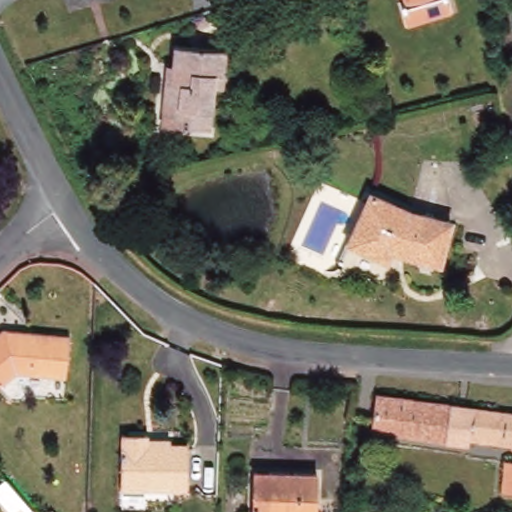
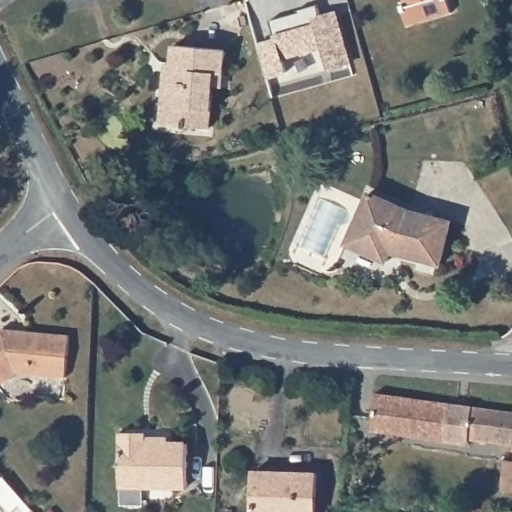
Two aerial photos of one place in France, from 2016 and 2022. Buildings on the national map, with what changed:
unchanged [(407,25),(402,9),(405,8),(403,0),(448,0),(451,12),(407,25)]
new [(266,79),(257,44),(274,38),(269,21),(297,12),(296,10),(317,5),(320,15),(337,10),(353,66),(328,72),(322,50),(283,60),(286,75),(266,79)]
unchanged [(162,120),(165,85),(166,69),(173,70),(174,51),(226,55),(223,93),(214,92),(210,134),(184,132),(161,130),(162,120)]
unchanged [(416,212),(452,221),(442,266),(401,256),(401,254),(393,251),(392,255),(388,263),(353,247),(346,244),(368,192),(375,195),(408,210),(416,212)]
unchanged [(6,331),(72,337),(68,377),(21,373),(0,391),(0,337),(6,331)]
unchanged [(512,444),(473,439),(472,444),(376,431),(380,395),(512,412),(512,444)]
unchanged [(146,433),(146,444),(185,444),(185,486),(121,486),(121,433),(146,433)]
unchanged [(512,492),(506,492),(508,461),(512,462),(512,492)]
unchanged [(314,472),(314,512),(251,512),(252,471),(314,472)]

